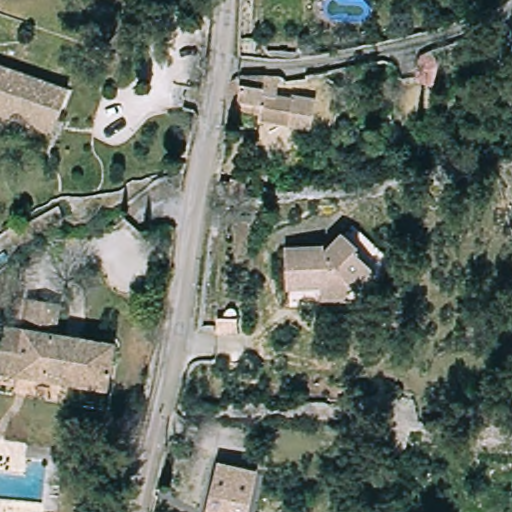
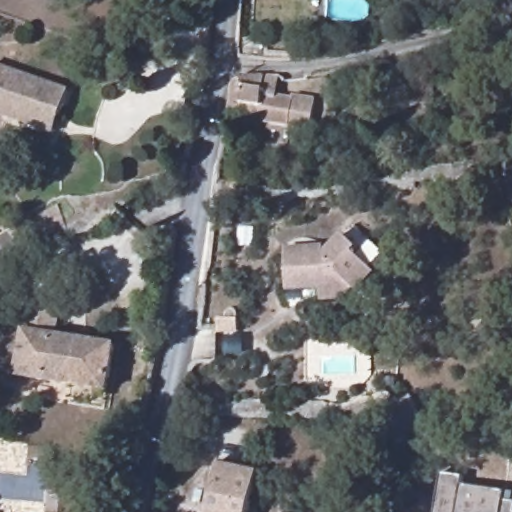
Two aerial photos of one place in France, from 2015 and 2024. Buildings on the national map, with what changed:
unchanged [(51,138),(0,120),(0,68),(66,92),(51,138)]
unchanged [(306,103),(301,132),(234,121),(236,106),(213,101),(213,100),(216,79),(225,80),(249,79),(254,79),(252,95),(306,103)]
unchanged [(321,305),(319,290),(286,290),(286,248),(324,246),(323,254),(329,255),(349,237),(361,253),(358,257),(376,280),(354,297),(348,288),(343,303),(321,305)]
unchanged [(0,376),(0,343),(3,327),(21,330),(26,301),(59,306),(54,335),(116,345),(108,393),(0,376)]
unchanged [(251,475),(243,512),(204,512),(214,466),(251,475)]
new [(464,476),(462,487),(512,495),(512,512),(434,512),(440,473),(464,476)]

